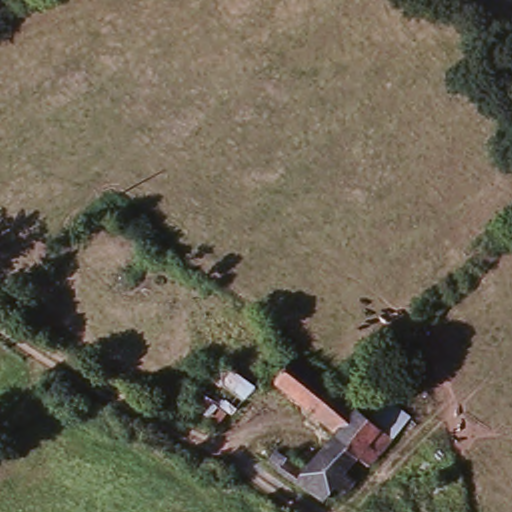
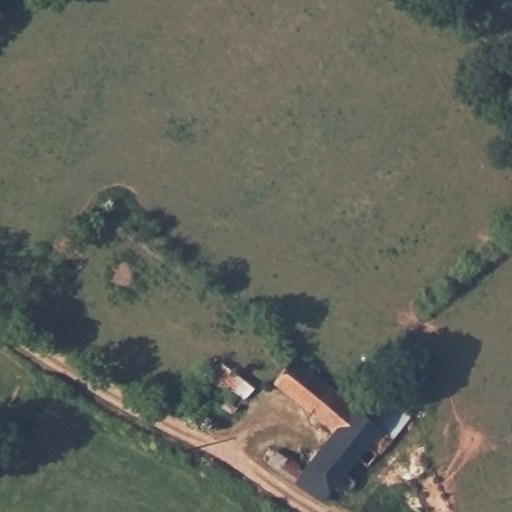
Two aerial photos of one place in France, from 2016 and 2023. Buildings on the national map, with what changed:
unchanged [(187,402),(217,360),(252,386),(218,425),(187,402)]
unchanged [(368,419),(387,397),(410,416),(344,494),(337,487),(323,505),(270,469),(280,455),(304,470),(332,434),(273,385),(295,360),(333,390),(368,419)]

